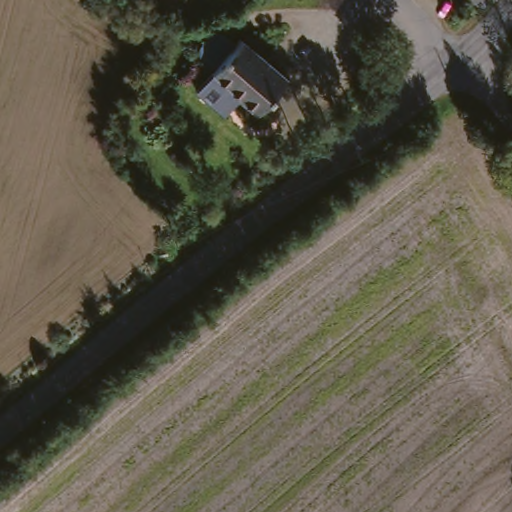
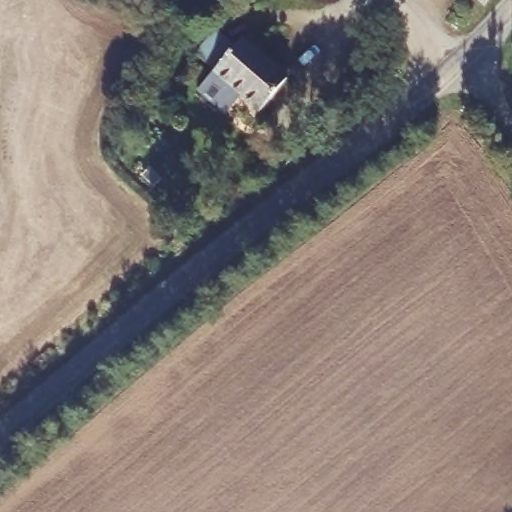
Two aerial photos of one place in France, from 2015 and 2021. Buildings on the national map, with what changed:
unchanged [(475,0),(490,0),(484,8),(475,0)]
unchanged [(259,116),(241,100),(237,105),(219,115),(198,96),(217,74),(197,57),(216,35),(237,52),(243,45),(288,84),(259,116)]

